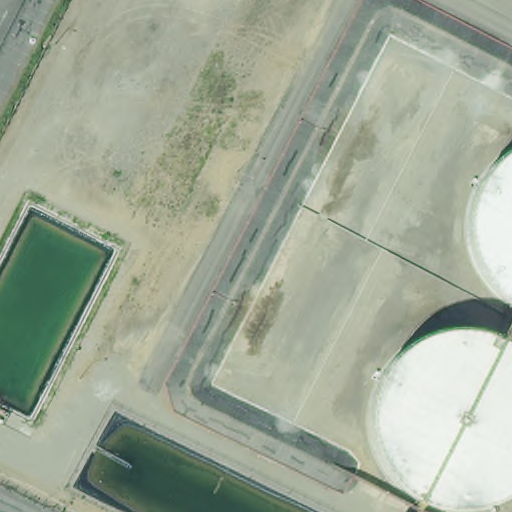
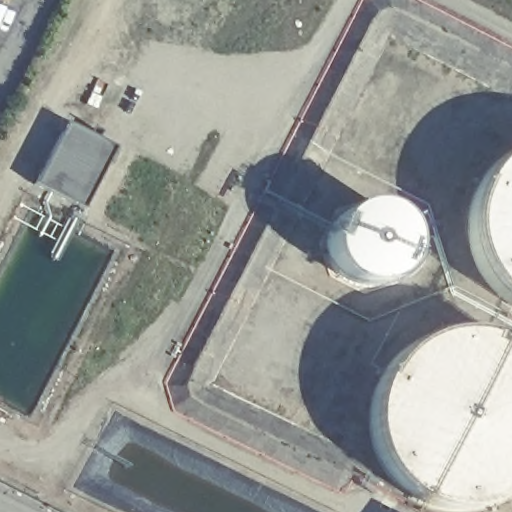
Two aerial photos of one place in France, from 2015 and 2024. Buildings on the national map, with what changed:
new [(116,149),(85,206),(38,181),(71,122),(116,149)]

